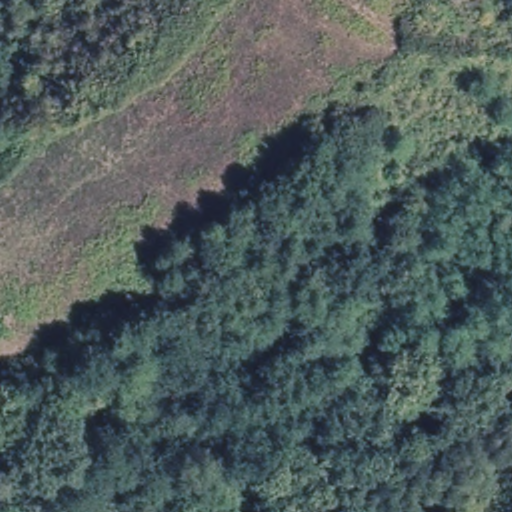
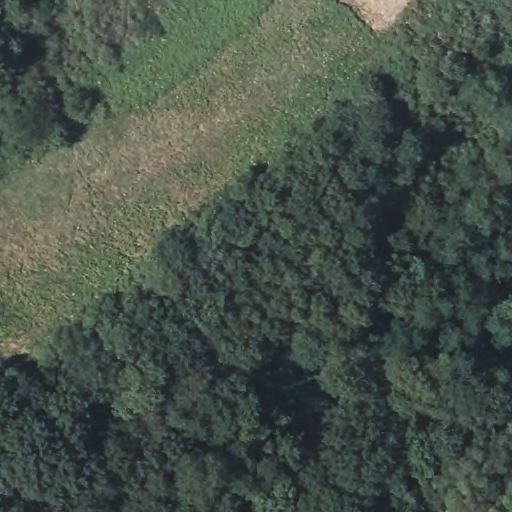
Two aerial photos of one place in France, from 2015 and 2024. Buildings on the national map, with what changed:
[]

